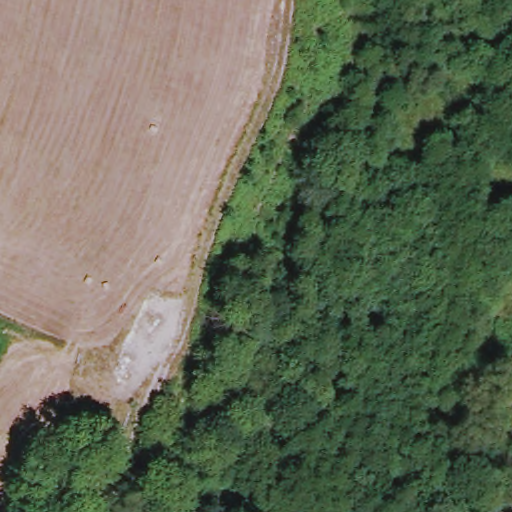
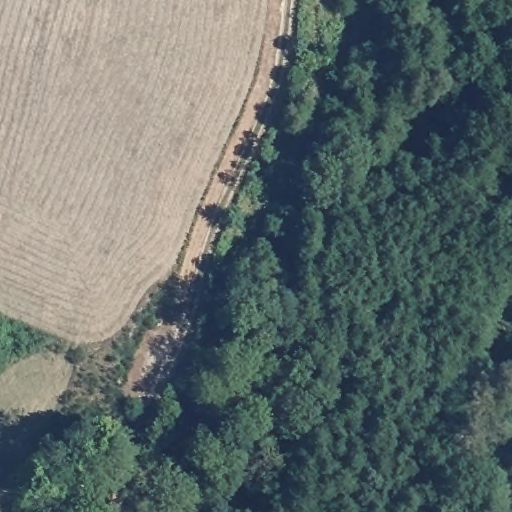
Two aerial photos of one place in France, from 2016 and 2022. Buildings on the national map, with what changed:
unchanged [(37,512),(49,471),(88,486),(81,512),(37,512)]

